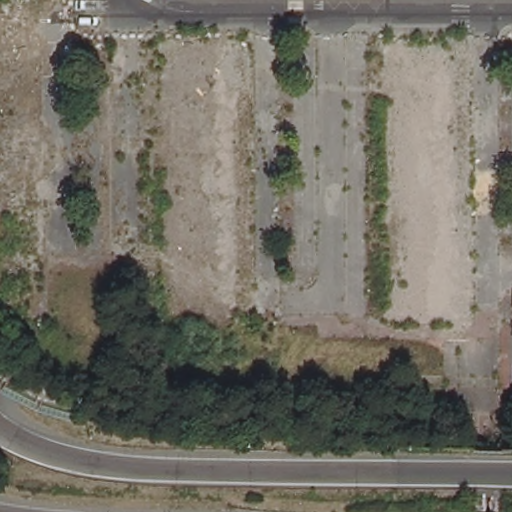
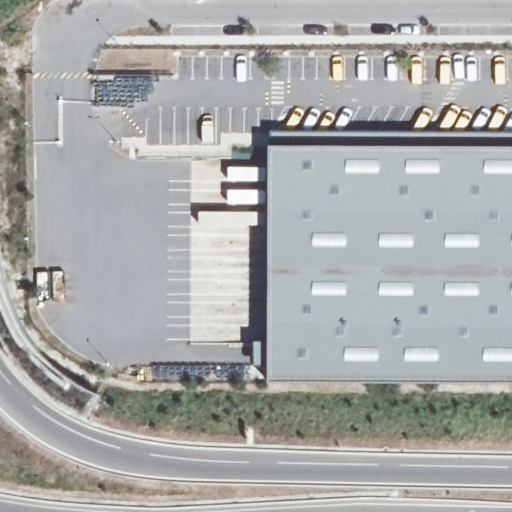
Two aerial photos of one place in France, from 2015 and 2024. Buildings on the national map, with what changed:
new [(512,149),(512,387),(267,384),(269,149),(512,149)]

